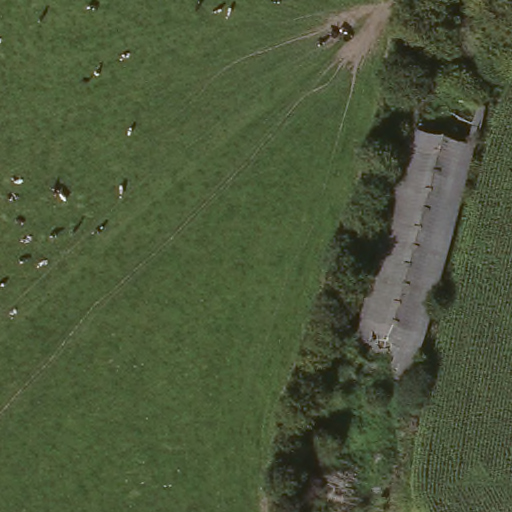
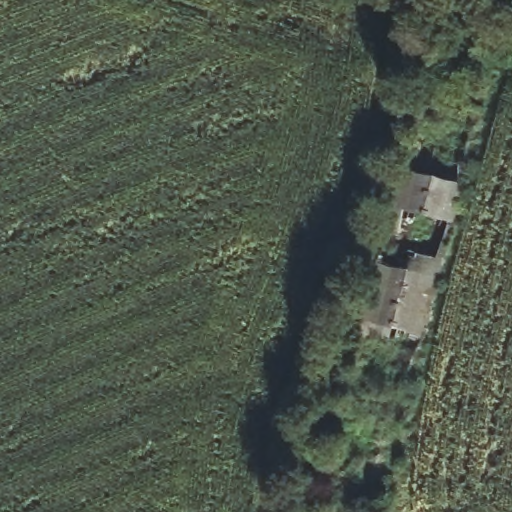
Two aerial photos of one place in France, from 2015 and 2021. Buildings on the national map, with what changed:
unchanged [(311,493),(416,97),(478,114),(373,510),(311,493)]

